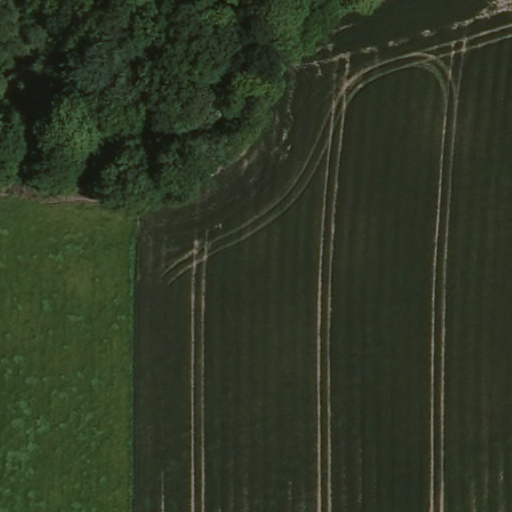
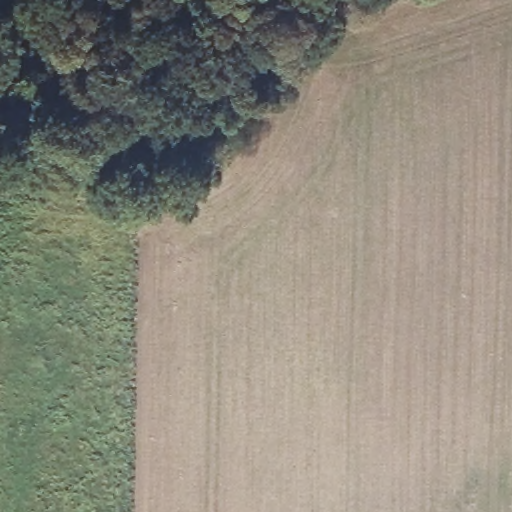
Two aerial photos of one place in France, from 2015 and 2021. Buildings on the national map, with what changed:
[]

